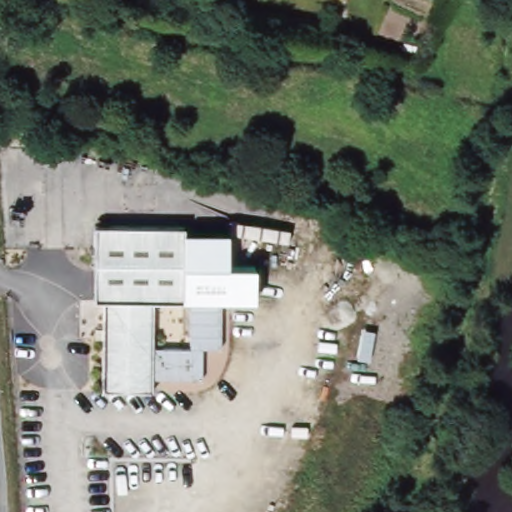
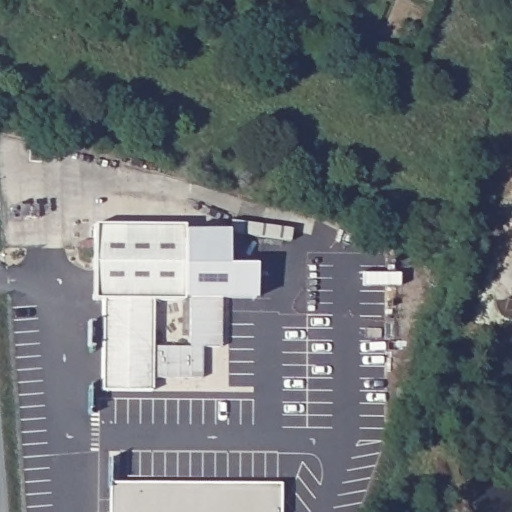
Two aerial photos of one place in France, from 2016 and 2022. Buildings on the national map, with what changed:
unchanged [(155,376),(155,390),(105,391),(104,300),(95,300),(93,225),(183,224),(184,299),(154,299),(155,345),(192,344),(191,294),(222,294),(223,344),(205,344),(205,375),(155,376)]
unchanged [(227,233),(228,266),(254,267),(255,299),(222,300),(222,294),(191,294),(191,298),(184,299),(183,235),(227,233)]
new [(115,484),(280,485),(280,512),(108,512),(109,484),(115,484)]

